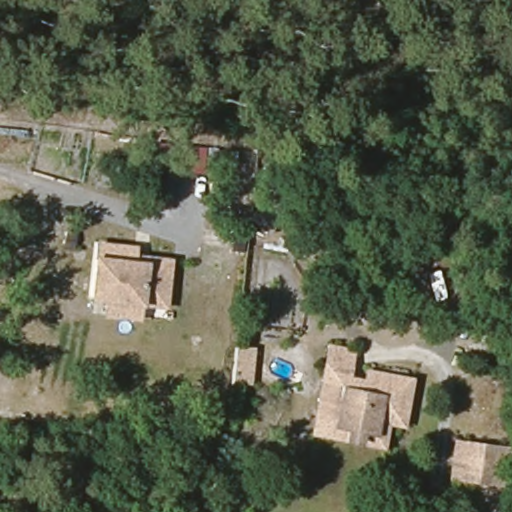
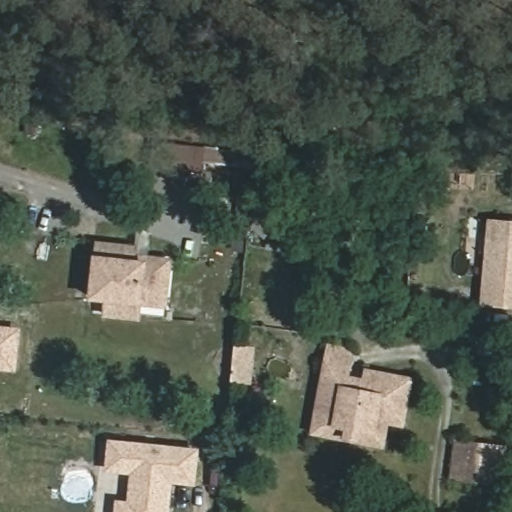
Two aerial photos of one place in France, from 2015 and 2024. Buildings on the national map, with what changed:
unchanged [(306,161),(282,168),(296,152),(306,161)]
unchanged [(280,231),(260,215),(271,203),(273,201),(280,199),(297,194),(299,195),(306,201),(280,231)]
demolished [(116,214),(116,209),(128,210),(116,214)]
new [(483,307),(489,240),(490,220),(500,220),(512,221),(512,310),(509,310),(483,307)]
unchanged [(106,317),(107,303),(91,301),(92,255),(95,252),(107,249),(104,251),(133,251),(132,260),(132,265),(142,266),(148,261),(169,263),(166,308),(140,306),(139,321),(106,317)]
new [(23,327),(17,372),(0,371),(0,325),(23,327)]
unchanged [(260,378),(243,376),(247,344),(263,345),(260,378)]
unchanged [(372,441),(334,432),(315,427),(316,423),(319,410),(329,365),(346,368),(344,379),(368,383),(370,372),(409,380),(403,418),(388,415),(385,431),(383,444),(372,441)]
new [(115,502),(127,504),(131,474),(104,472),(107,438),(201,448),(196,487),(171,485),(169,512),(114,512),(115,502)]
unchanged [(466,476),(454,475),(457,440),(469,442),(507,446),(504,481),(466,476)]

